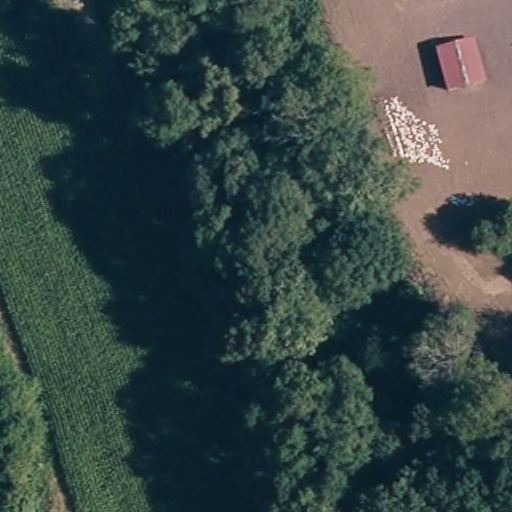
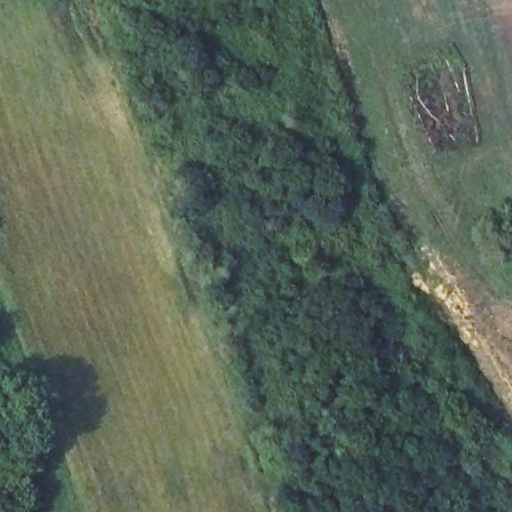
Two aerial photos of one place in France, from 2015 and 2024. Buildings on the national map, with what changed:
demolished [(475,58),(475,89),(442,91),(440,66),(440,47),(474,45),(475,58)]

